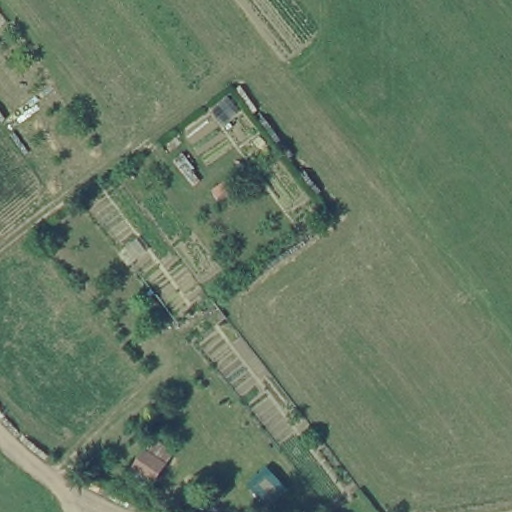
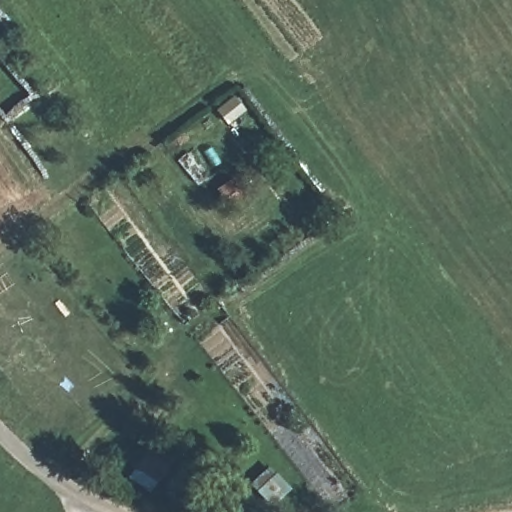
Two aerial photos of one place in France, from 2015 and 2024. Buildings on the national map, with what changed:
unchanged [(180,450),(155,486),(129,469),(155,435),(180,450)]

